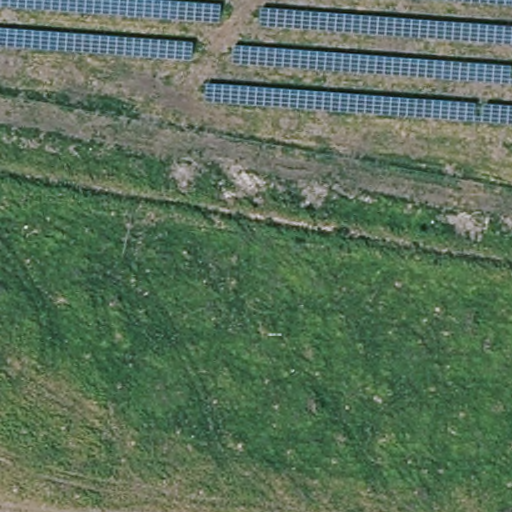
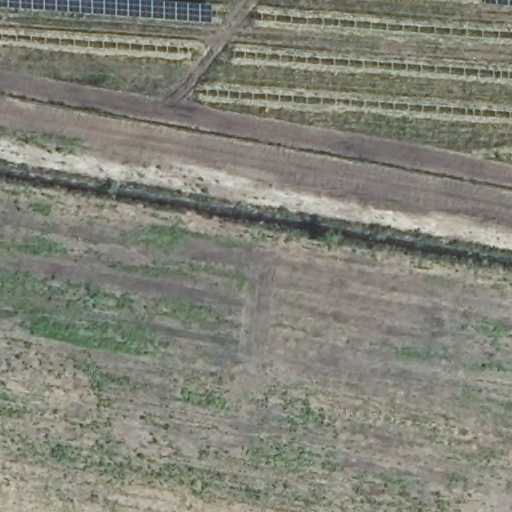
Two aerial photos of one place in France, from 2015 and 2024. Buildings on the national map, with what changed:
[]

